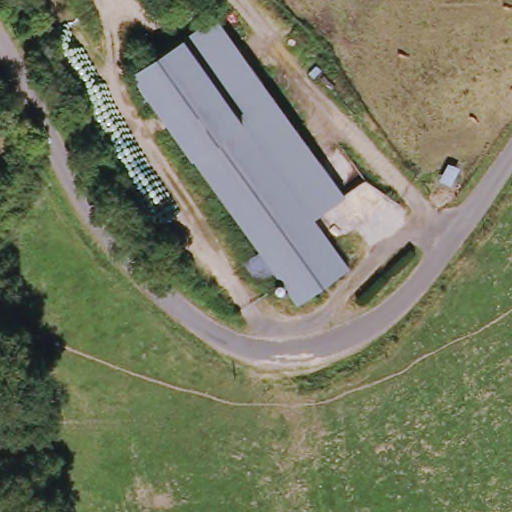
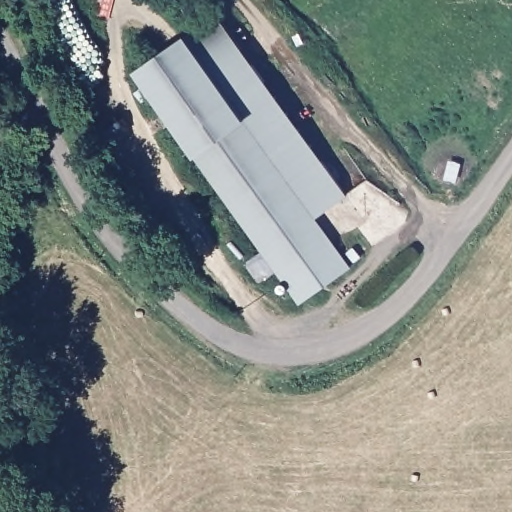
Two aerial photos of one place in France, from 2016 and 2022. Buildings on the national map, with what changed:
unchanged [(208,20),(251,75),(221,99),(177,43),(208,20)]
unchanged [(221,99),(251,75),(346,200),(318,223),(357,274),(308,311),(130,79),(177,43),(221,99)]

